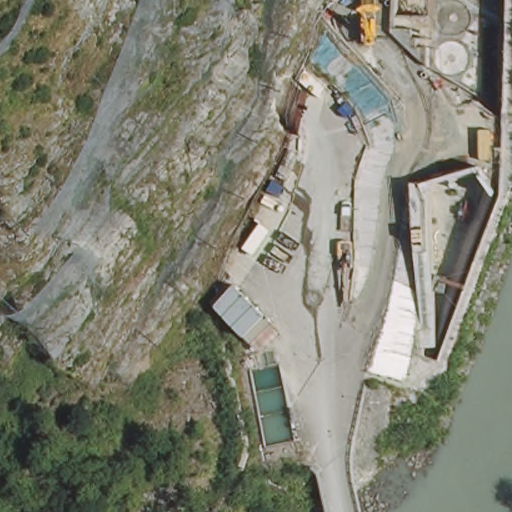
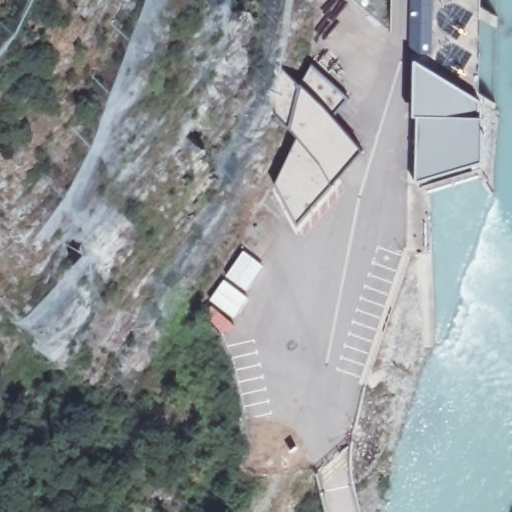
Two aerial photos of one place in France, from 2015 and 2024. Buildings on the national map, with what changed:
new [(433,0),(432,55),(410,54),(411,0),(433,0)]
new [(415,61),(481,99),(482,116),(485,116),(485,161),(417,182),(414,118),(415,61)]
new [(332,116),(362,149),(332,184),(297,225),(275,186),(297,138),(287,128),(265,105),(276,65),(302,86),(312,67),(348,99),(332,116)]

